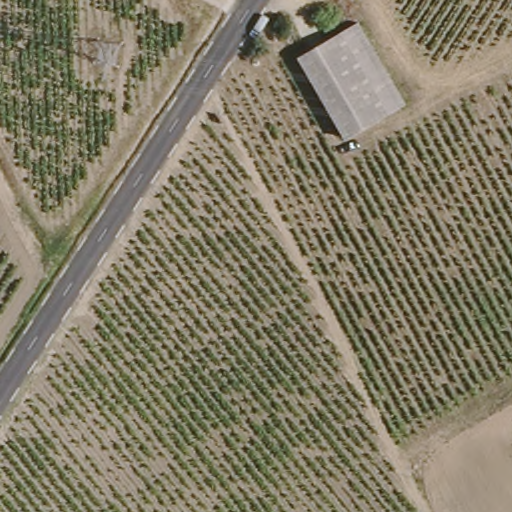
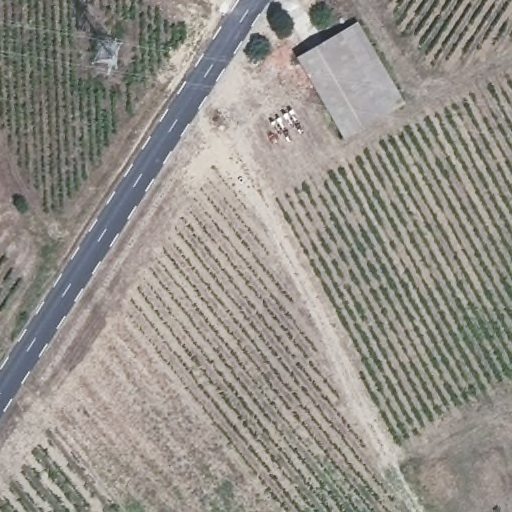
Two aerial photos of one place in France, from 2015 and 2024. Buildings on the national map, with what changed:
unchanged [(360,20),(405,104),(399,107),(341,137),(296,54),(356,22),(360,20)]

